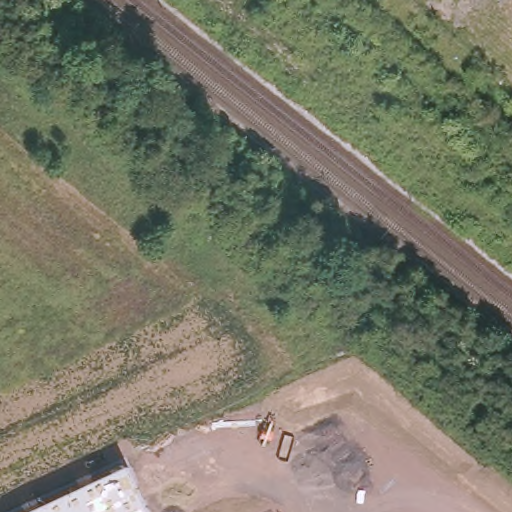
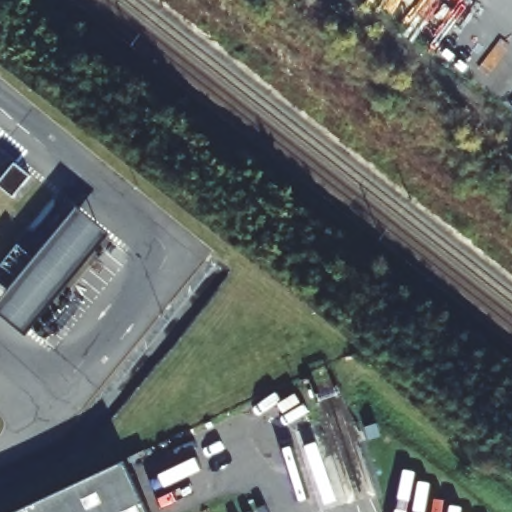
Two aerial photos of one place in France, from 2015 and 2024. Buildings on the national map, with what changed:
new [(15,162),(32,175),(13,197),(0,187),(0,180),(15,162)]
new [(77,205),(110,232),(27,334),(0,311),(0,299),(77,205)]
unchanged [(150,512),(16,512),(127,459),(150,512)]

